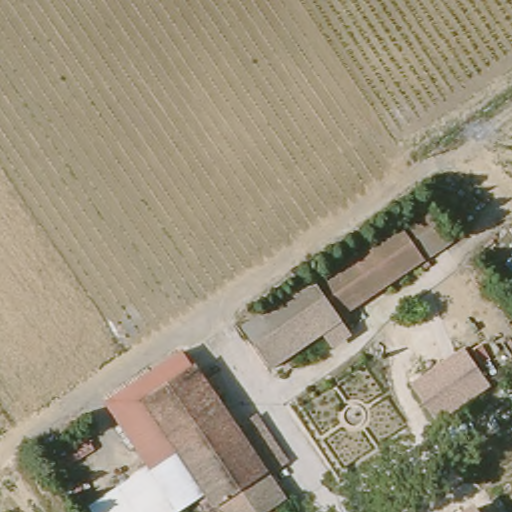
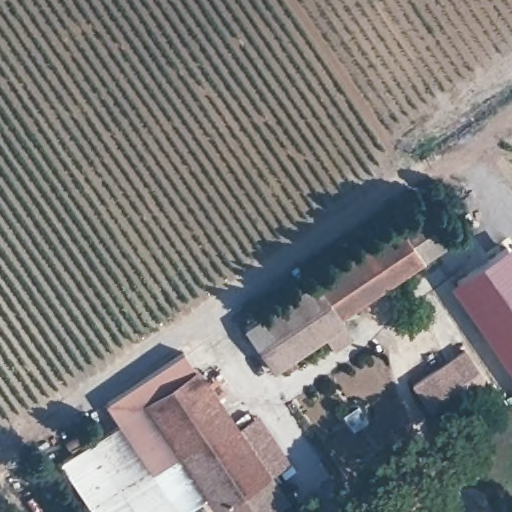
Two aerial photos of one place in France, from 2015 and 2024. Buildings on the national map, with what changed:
unchanged [(342,316),(345,320),(273,368),(246,325),(430,206),(454,243),(342,316)]
new [(512,374),(448,282),(511,239),(512,241),(512,374)]
unchanged [(285,503),(271,512),(222,512),(220,508),(213,512),(210,512),(202,499),(183,512),(180,512),(110,404),(187,353),(285,503)]
unchanged [(475,388),(437,414),(419,387),(457,362),(475,388)]
new [(122,423),(180,512),(92,512),(61,465),(122,423)]
unchanged [(474,503),(477,508),(485,503),(491,512),(460,512),(474,503)]

